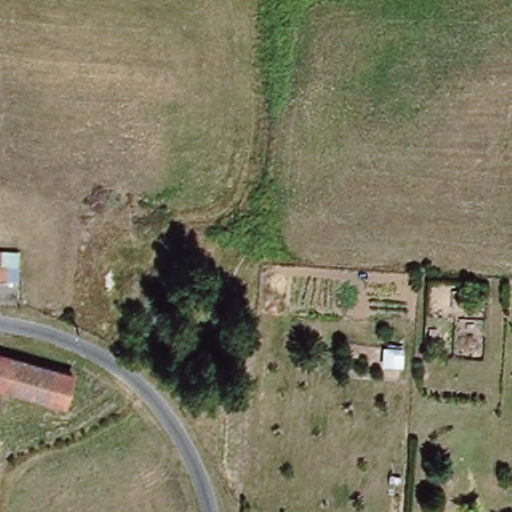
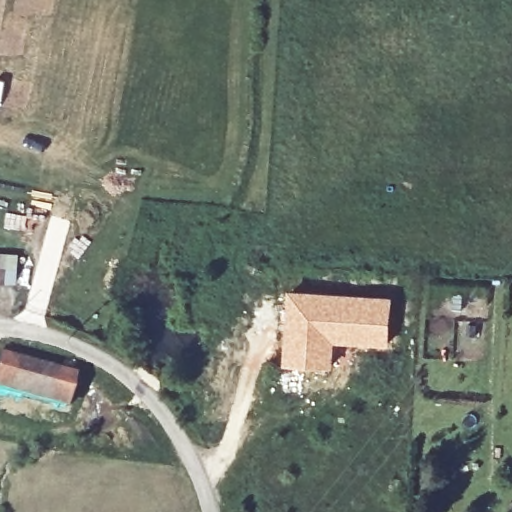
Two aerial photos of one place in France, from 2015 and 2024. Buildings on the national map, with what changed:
unchanged [(28,256),(23,290),(0,287),(0,253),(28,256)]
new [(288,288),(393,295),(390,345),(336,342),(333,365),(283,362),(288,288)]
unchanged [(0,389),(0,360),(1,355),(78,380),(68,410),(0,389)]

